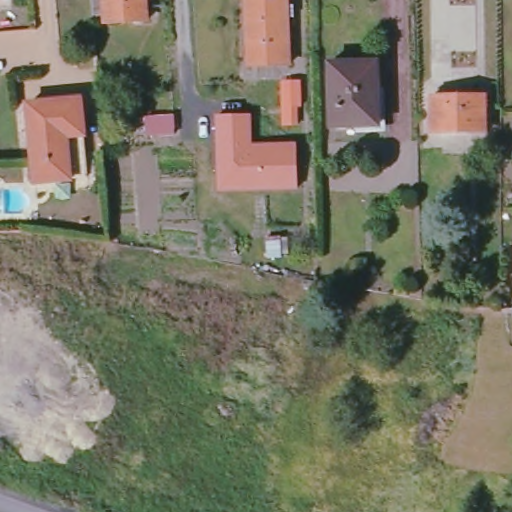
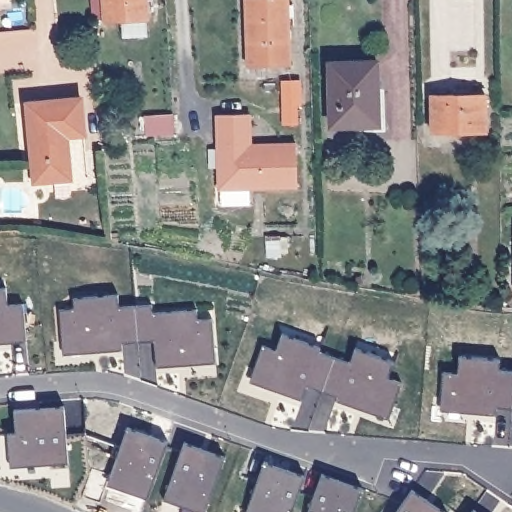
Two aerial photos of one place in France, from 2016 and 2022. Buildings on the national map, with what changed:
unchanged [(110,22),(110,20),(98,21),(96,0),(151,0),(152,20),(110,22)]
unchanged [(248,65),(246,0),(288,0),(290,64),(248,65)]
unchanged [(377,62),(379,125),(377,125),(377,131),(354,132),(353,126),(331,126),(330,63),(377,62)]
unchanged [(300,80),(301,106),(297,106),(297,124),(284,125),(283,107),(282,81),(300,80)]
unchanged [(485,95),(486,132),(432,133),(431,96),(485,95)]
unchanged [(81,99),(88,177),(35,182),(28,104),(81,99)]
unchanged [(172,115),(173,134),(145,135),(145,117),(172,115)]
unchanged [(253,145),(297,144),(297,190),(220,194),(217,117),(252,116),(253,145)]
new [(7,287),(8,305),(24,303),(26,342),(0,344),(0,287),(7,287)]
new [(119,295),(120,307),(135,306),(138,343),(122,345),(122,351),(100,352),(100,347),(66,350),(65,340),(61,340),(60,308),(75,307),(74,297),(119,295)]
new [(153,313),(197,311),(198,321),(213,320),(215,361),(177,363),(178,368),(155,370),(154,342),(138,343),(135,306),(152,305),(153,313)]
new [(321,345),(320,350),(335,355),(322,390),(307,385),(302,399),(281,391),(283,387),(255,377),(257,368),(254,367),(262,343),(276,348),(282,332),(321,345)]
new [(394,360),(388,375),(402,380),(394,405),(390,403),(387,411),(359,402),(357,406),(336,399),(338,395),(322,390),(335,355),(350,360),(355,346),(394,360)]
new [(512,407),(496,406),(496,414),(473,412),(474,407),(444,405),(445,396),(441,395),(443,370),(457,371),(458,355),(500,358),(499,369),(512,370),(512,407)]
new [(185,441),(225,456),(205,510),(184,501),(193,475),(175,468),(185,441)]
new [(263,460),(305,476),(293,512),(250,512),(251,510),(246,507),(263,460)]
new [(321,474),(362,488),(354,512),(307,512),(321,474)]
new [(412,490),(444,512),(397,512),(412,490)]
new [(473,511),(474,512),(472,512),(473,511)]

